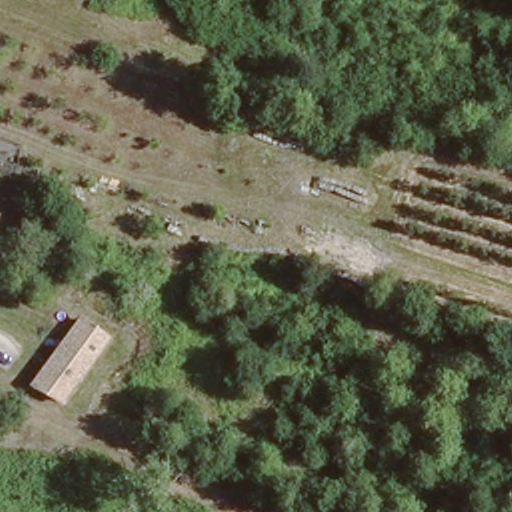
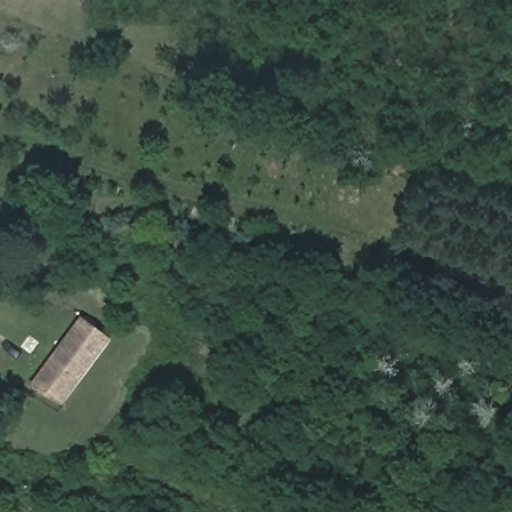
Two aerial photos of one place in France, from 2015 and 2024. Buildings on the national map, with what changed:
unchanged [(113,338),(64,400),(32,381),(81,314),(113,338)]

